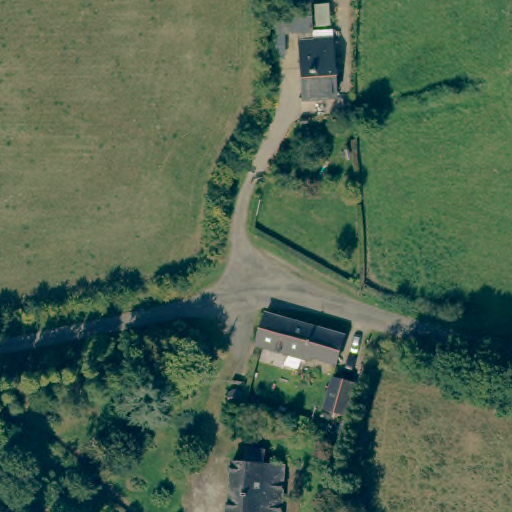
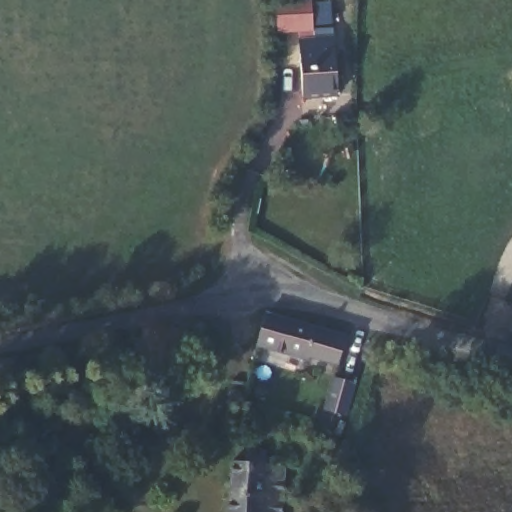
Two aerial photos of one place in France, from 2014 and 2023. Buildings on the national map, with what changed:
unchanged [(313,22),(315,65),(335,64),(340,116),(307,120),(304,75),(302,75),(301,56),(288,56),(283,56),(281,25),(290,24),(313,22)]
unchanged [(333,34),(335,52),(321,52),(320,35),(333,34)]
unchanged [(267,315),(346,336),(339,362),(310,355),(309,360),(261,346),(267,315)]
unchanged [(338,413),(326,410),(335,378),(350,382),(355,384),(347,416),(338,413)]
unchanged [(247,397),(249,402),(246,407),(241,408),(236,406),(235,401),(238,396),(244,395),(247,397)]
unchanged [(235,467),(249,464),(249,452),(267,451),(268,465),(288,465),(289,512),(235,512),(235,467)]

